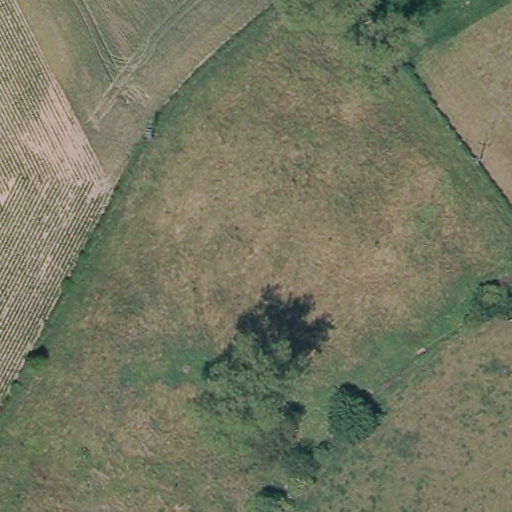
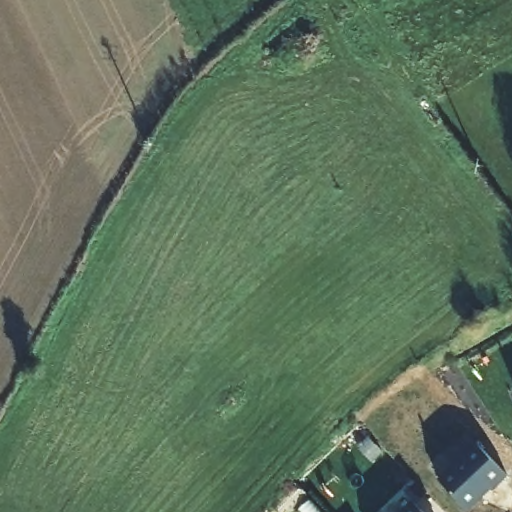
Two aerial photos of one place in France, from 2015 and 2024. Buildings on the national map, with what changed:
new [(470,511),(439,478),(477,442),(508,474),(470,511)]
new [(424,512),(402,512),(414,501),(424,512)]

